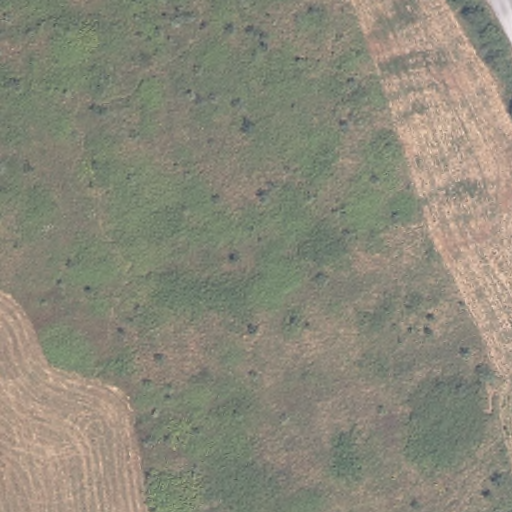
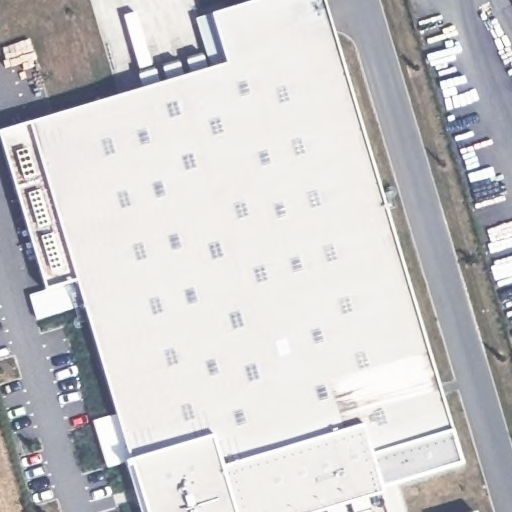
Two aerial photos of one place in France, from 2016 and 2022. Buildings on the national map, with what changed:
new [(382,494),(365,499),(372,509),(361,512),(142,512),(129,467),(125,469),(123,462),(106,467),(94,421),(114,413),(81,307),(35,320),(28,295),(44,291),(0,143),(0,130),(225,64),(209,13),(255,0),(322,0),(451,430),(462,465),(381,490),(382,494)]
new [(476,512),(473,512),(476,511),(476,512)]

